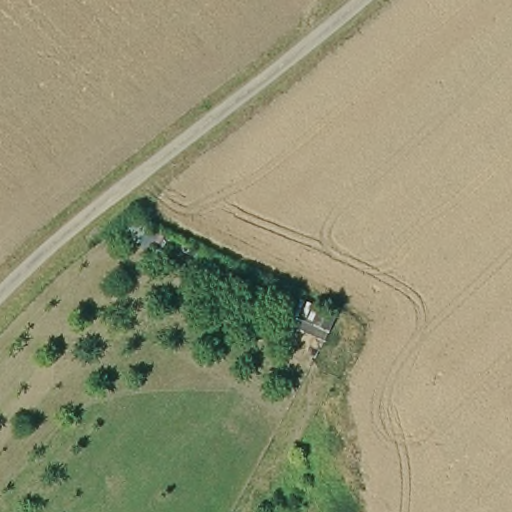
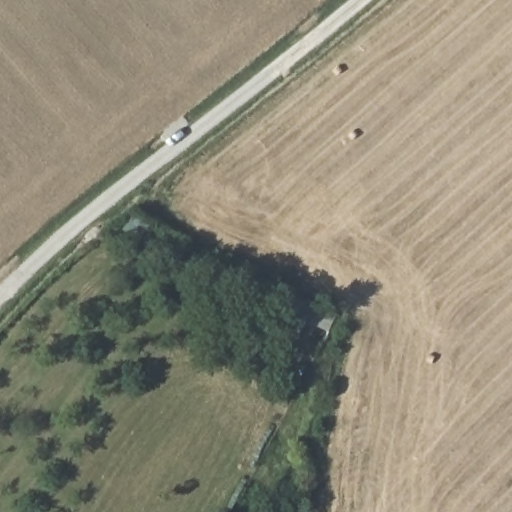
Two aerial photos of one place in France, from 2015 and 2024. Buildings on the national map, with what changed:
unchanged [(283,316),(291,297),(332,315),(325,334),(283,316)]

